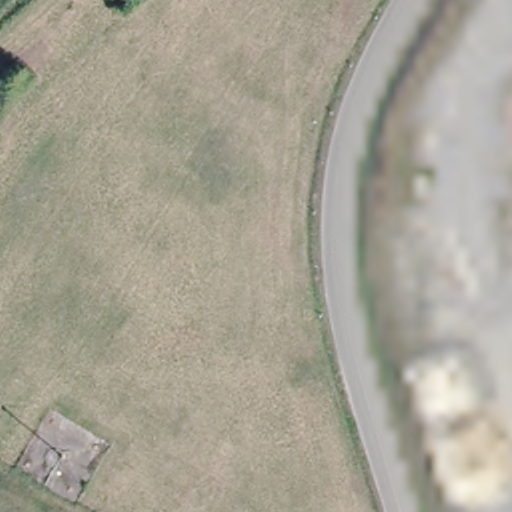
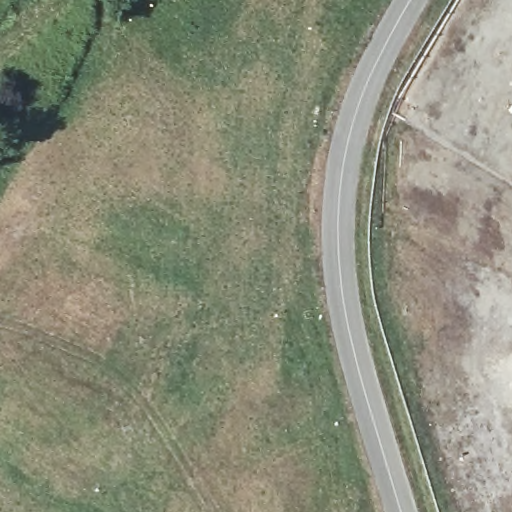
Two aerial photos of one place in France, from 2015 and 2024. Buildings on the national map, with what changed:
[]

